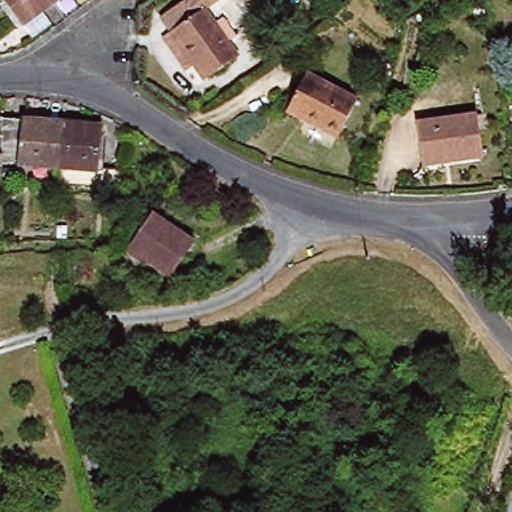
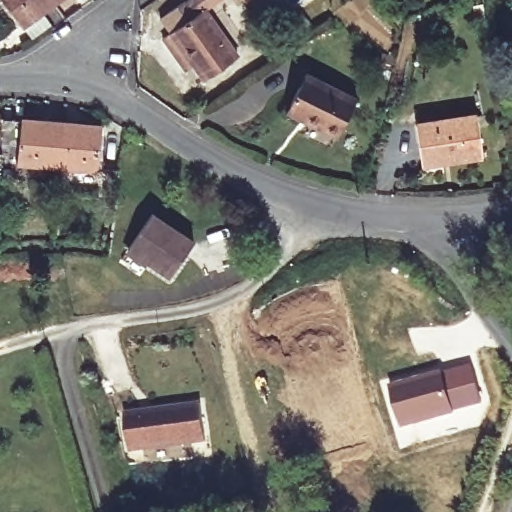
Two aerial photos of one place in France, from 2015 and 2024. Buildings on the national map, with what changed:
unchanged [(6,0),(56,0),(59,4),(27,28),(6,0)]
unchanged [(65,0),(59,4),(56,0),(65,0)]
unchanged [(194,67),(171,34),(179,29),(168,13),(187,0),(224,0),(215,6),(246,54),(211,77),(201,62),(194,67)]
unchanged [(362,99),(340,137),(292,109),(313,72),(362,99)]
unchanged [(428,167),(422,125),(480,116),(487,158),(428,167)]
unchanged [(11,118),(77,122),(72,165),(13,161),(11,118)]
unchanged [(114,124),(110,168),(72,165),(77,122),(114,124)]
unchanged [(177,271),(135,248),(152,216),(194,239),(177,271)]
new [(429,371),(470,362),(481,403),(400,427),(388,383),(429,371)]
new [(200,400),(205,438),(127,448),(122,410),(200,400)]

